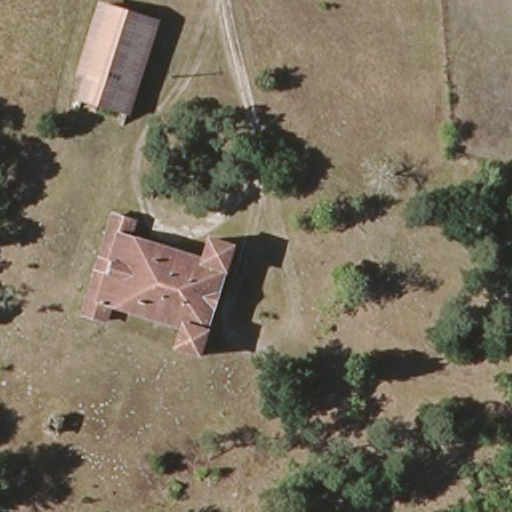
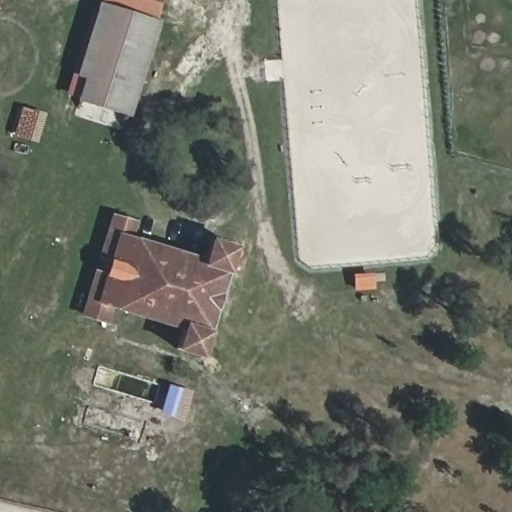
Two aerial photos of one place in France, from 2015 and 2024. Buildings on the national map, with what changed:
unchanged [(132,118),(76,101),(83,79),(74,76),(97,3),(161,21),(132,118)]
unchanged [(76,320),(83,295),(98,296),(111,241),(96,235),(100,212),(129,220),(124,241),(199,263),(182,325),(111,305),(100,326),(76,320)]
unchanged [(203,354),(176,348),(182,325),(199,263),(204,243),(237,245),(203,354)]

